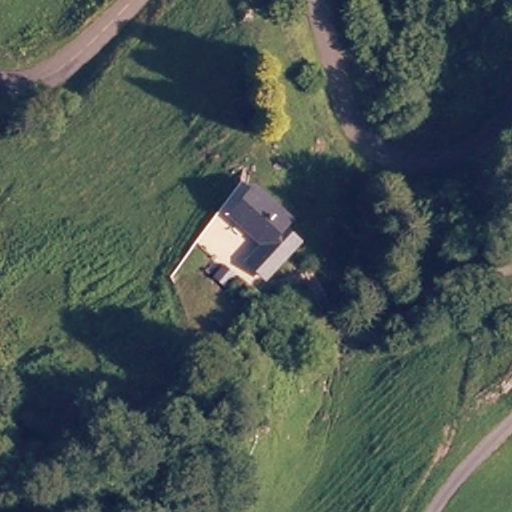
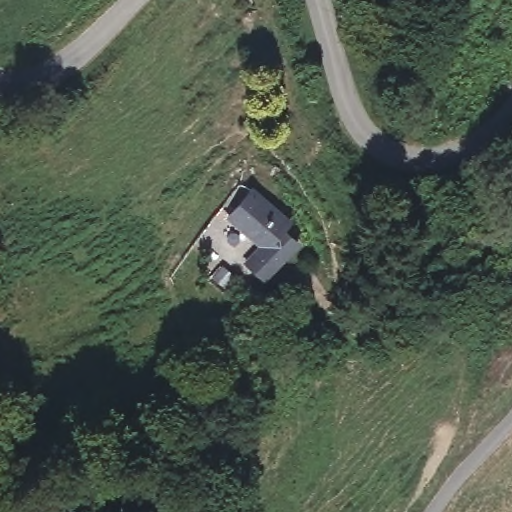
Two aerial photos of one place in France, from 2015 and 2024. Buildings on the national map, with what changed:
unchanged [(230,209),(252,184),(288,217),(281,224),(266,241),(261,237),(230,209)]
unchanged [(296,243),(261,286),(255,272),(254,268),(253,266),(256,261),(282,225),(288,217),(289,215),(296,243)]
unchanged [(227,254),(237,266),(228,273),(218,260),(227,254)]

